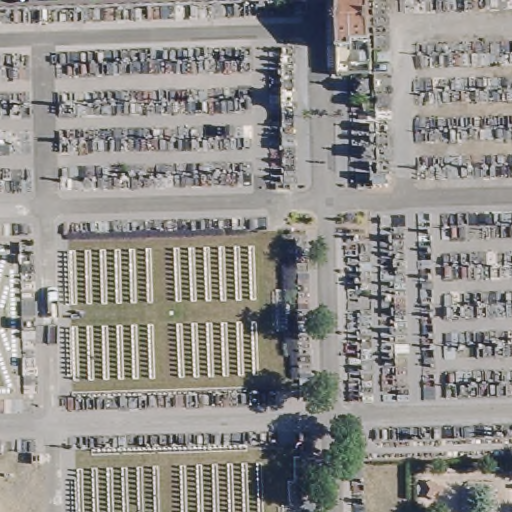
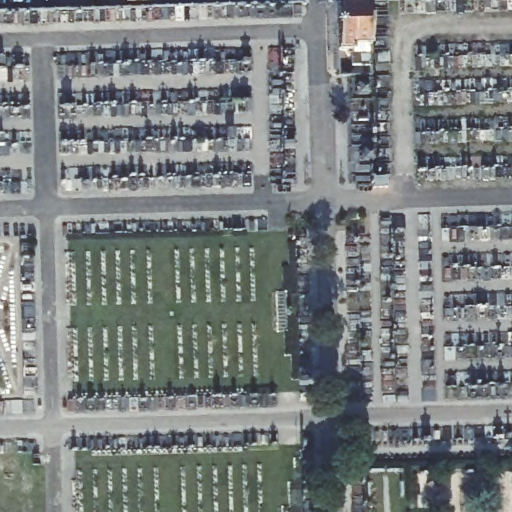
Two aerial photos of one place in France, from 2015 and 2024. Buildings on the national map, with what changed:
unchanged [(372,5),(374,55),(375,68),(342,70),(339,5),(372,5)]

